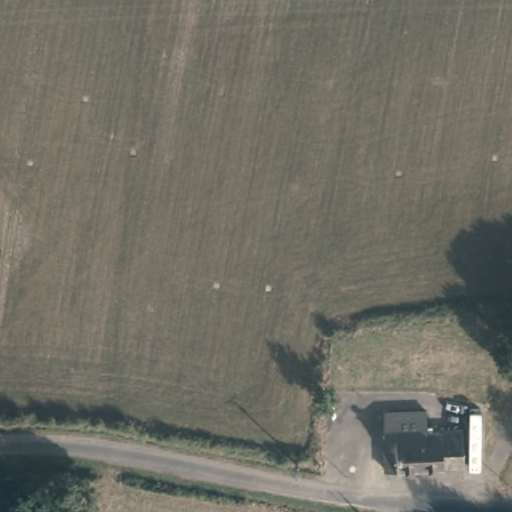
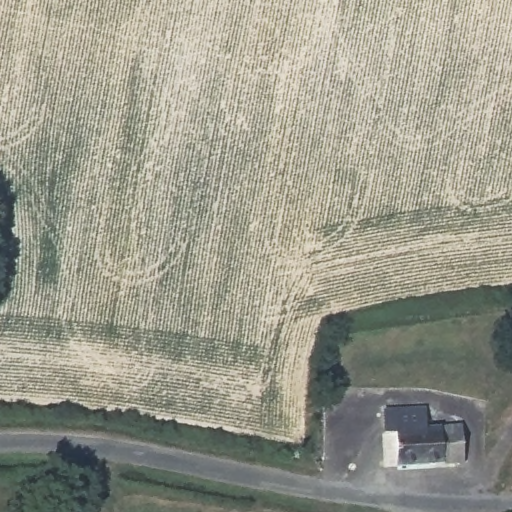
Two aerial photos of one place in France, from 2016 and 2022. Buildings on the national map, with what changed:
unchanged [(349,339),(350,341),(351,344),(351,348),(350,351),(347,352),(344,352),(340,352),(338,350),(336,346),(337,341),(341,340),(346,338),(349,339)]
unchanged [(469,458),(395,465),(389,409),(428,405),(431,425),(465,421),(466,428),(468,448),(468,452),(469,458)]

